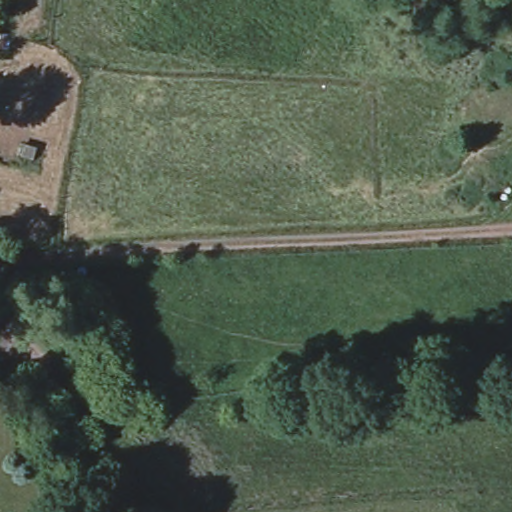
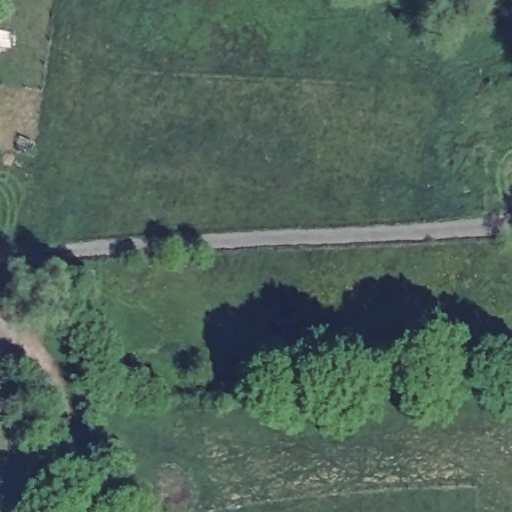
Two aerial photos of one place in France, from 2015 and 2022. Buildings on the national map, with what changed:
unchanged [(7,46),(0,46),(0,29),(8,29),(7,46)]

